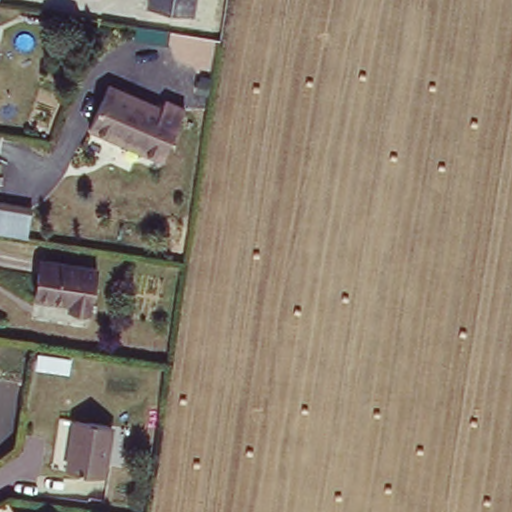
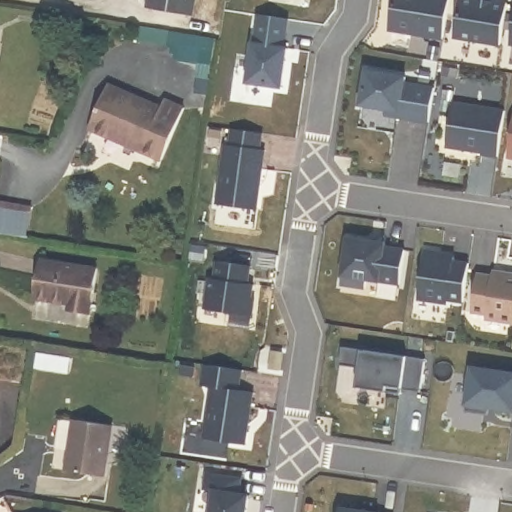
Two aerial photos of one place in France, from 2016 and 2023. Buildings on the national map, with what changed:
unchanged [(149,5),(150,0),(191,0),(189,12),(149,5)]
new [(443,39),(390,30),(394,0),(450,0),(443,39)]
new [(500,46),(455,38),(461,0),(476,0),(491,2),(491,0),(508,3),(500,46)]
new [(282,88),(248,82),(254,43),(255,43),(260,15),(289,19),(285,48),(288,48),(282,88)]
new [(510,45),(512,37),(512,45),(510,45)]
new [(430,122),(399,117),(400,112),(361,105),(367,71),(406,77),(406,83),(435,88),(430,122)]
unchanged [(161,104),(167,97),(186,106),(164,158),(93,126),(113,83),(161,104)]
new [(498,157),(482,155),(482,153),(446,147),(453,103),(505,111),(498,157)]
new [(256,210),(217,204),(225,144),(230,145),(232,129),(262,133),(260,149),(265,150),(256,210)]
new [(511,158),(508,154),(512,133),(512,158),(511,158)]
unchanged [(34,236),(0,231),(0,204),(38,209),(34,236)]
new [(400,285),(366,280),(365,289),(341,285),(348,238),(386,244),(385,247),(405,250),(400,285)]
new [(463,302),(449,300),(448,304),(418,300),(426,251),(442,253),(441,256),(455,258),(455,262),(470,264),(463,302)]
unchanged [(107,265),(99,312),(77,308),(79,302),(32,293),(40,253),(107,265)]
new [(252,298),(255,298),(252,316),(205,309),(210,278),(215,279),(218,261),(250,266),(248,284),(254,285),(252,298)]
new [(491,320),(487,314),(472,312),(478,275),(492,277),(493,274),(508,276),(508,274),(512,275),(512,323),(491,320)]
new [(387,392),(356,388),(360,368),(340,365),(342,347),(426,359),(421,392),(401,389),(402,390),(402,394),(387,392)]
new [(280,371),(269,369),(272,351),(283,352),(280,371)]
new [(246,445),(205,439),(212,387),(202,386),(205,365),(242,370),(240,390),(254,392),(246,445)]
new [(490,408),(488,415),(466,412),(472,367),(512,373),(512,412),(490,408)]
unchanged [(65,464),(74,413),(112,420),(104,471),(65,464)]
new [(212,512),(215,492),(205,490),(207,474),(242,479),(240,494),(250,496),(248,512),(212,512)]
new [(366,512),(340,512),(340,508),(366,512)]

